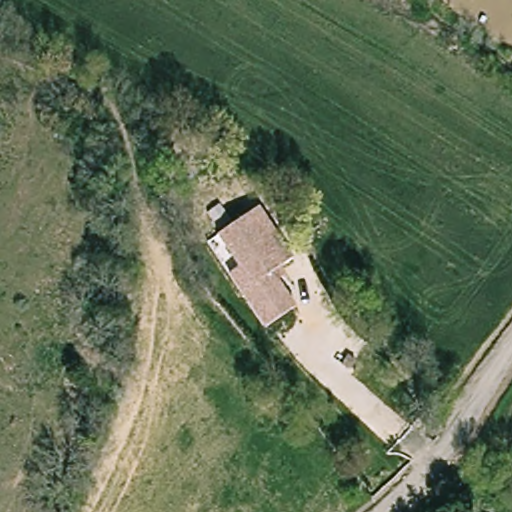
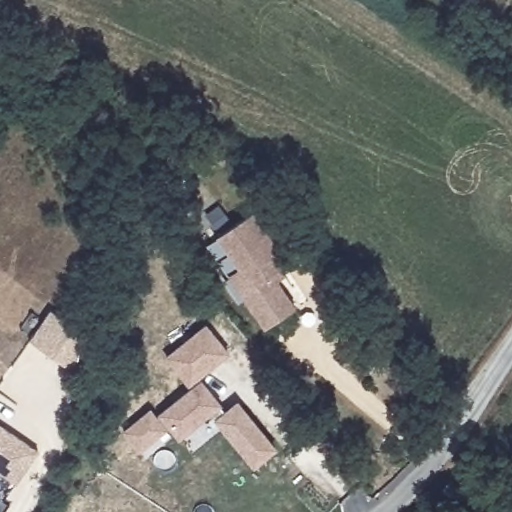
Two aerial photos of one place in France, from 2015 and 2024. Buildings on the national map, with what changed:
unchanged [(241,268),(220,238),(258,209),(295,258),(275,273),(299,306),(270,327),(250,300),(232,276),(241,268)]
new [(50,310),(95,341),(74,371),(30,341),(50,310)]
new [(277,447),(251,470),(210,415),(180,440),(167,428),(139,453),(122,432),(151,410),(156,416),(190,389),(165,357),(206,325),(231,354),(200,377),(226,410),(236,401),(277,447)]
new [(37,450),(17,483),(0,472),(0,424),(37,450)]

